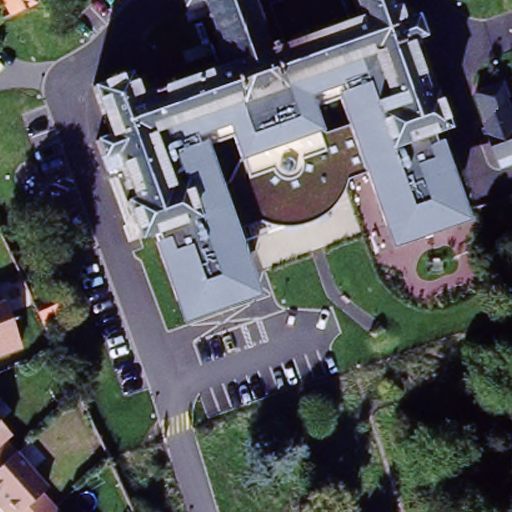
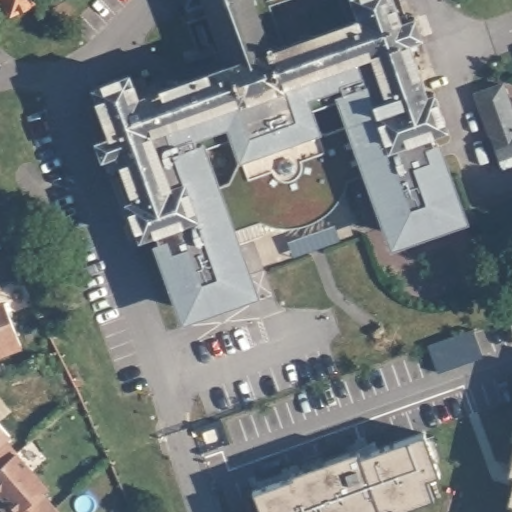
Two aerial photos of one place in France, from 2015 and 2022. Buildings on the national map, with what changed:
unchanged [(4,19),(0,11),(0,0),(27,0),(31,7),(4,19)]
unchanged [(447,124),(389,144),(363,71),(171,139),(196,214),(139,233),(127,197),(134,195),(123,162),(108,166),(98,136),(111,131),(95,82),(130,70),(131,73),(138,71),(139,74),(146,72),(152,88),(227,61),(205,1),(186,8),(184,0),(253,0),(269,46),(358,14),(354,0),(395,0),(399,10),(406,9),(409,15),(414,13),(421,33),(416,35),(418,40),(411,43),(427,90),(434,88),(444,85),(456,120),(447,124)]
unchanged [(290,38),(269,46),(253,0),(354,0),(358,14),(290,38)]
unchanged [(185,218),(196,214),(171,139),(363,71),(389,144),(434,128),(469,223),(389,252),(362,178),(348,183),(341,200),(326,217),(303,227),(278,229),(261,222),(237,231),(264,297),(178,329),(148,242),(143,243),(139,233),(185,218)]
unchanged [(503,164),(477,88),(501,80),(512,110),(512,160),(503,164)]
unchanged [(45,324),(28,290),(44,282),(60,316),(45,324)]
unchanged [(0,359),(0,310),(16,353),(0,359)]
new [(484,356),(439,372),(429,345),(474,328),(484,356)]
unchanged [(0,441),(0,430),(5,436),(0,441)]
new [(248,493),(256,491),(295,478),(294,474),(307,470),(363,451),(364,455),(428,434),(442,476),(429,480),(436,500),(401,512),(394,512),(393,508),(382,512),(251,512),(255,511),(261,509),(254,511),(248,493)]
new [(430,440),(437,438),(444,459),(437,461),(430,440)]
unchanged [(0,504),(2,502),(0,500),(0,443),(42,490),(36,495),(51,512),(0,512),(0,504)]
new [(328,463),(307,470),(305,463),(326,457),(328,463)]
new [(509,475),(512,464),(512,476),(509,475)]
new [(509,505),(512,491),(512,505),(509,505)]
new [(393,508),(394,512),(382,512),(393,508)]

